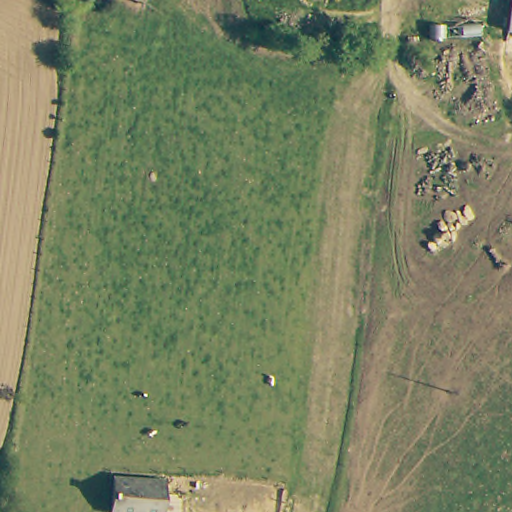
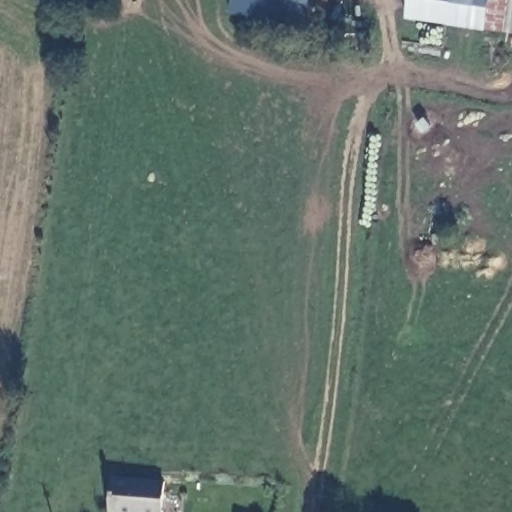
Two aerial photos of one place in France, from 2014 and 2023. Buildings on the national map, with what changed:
new [(307,23),(232,12),(234,0),(313,0),(312,4),(307,23)]
new [(409,0),(512,0),(512,32),(407,18),(409,0)]
unchanged [(158,512),(120,512),(105,511),(111,475),(161,480),(158,512)]

